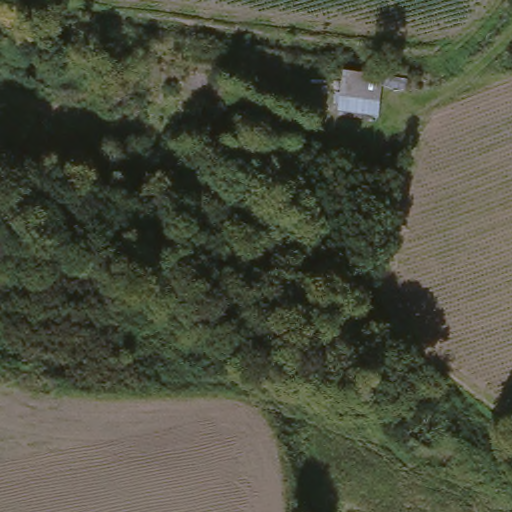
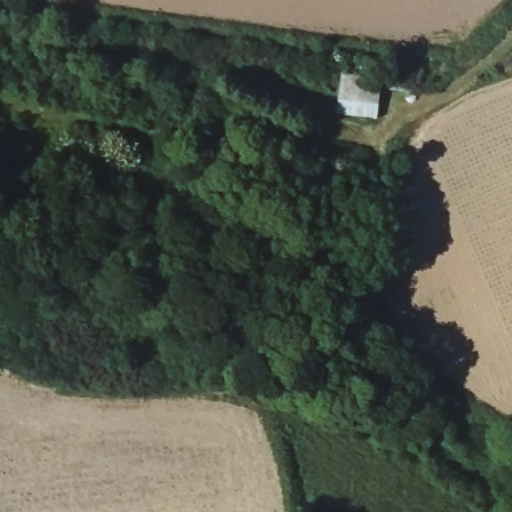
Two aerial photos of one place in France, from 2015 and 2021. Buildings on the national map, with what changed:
unchanged [(378,85),(374,125),(333,119),(338,80),(378,85)]

